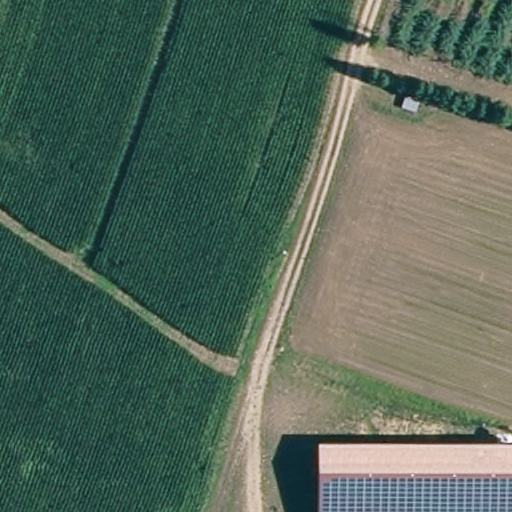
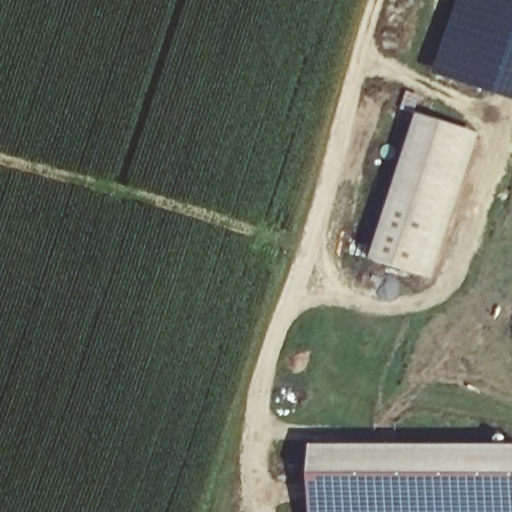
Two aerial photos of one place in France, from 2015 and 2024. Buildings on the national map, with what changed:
new [(512,101),(439,76),(464,0),(512,0),(512,101)]
new [(422,119),(471,134),(426,278),(377,262),(422,119)]
new [(471,134),(483,138),(438,281),(426,278),(471,134)]
unchanged [(512,512),(316,512),(315,446),(512,447),(512,512)]

